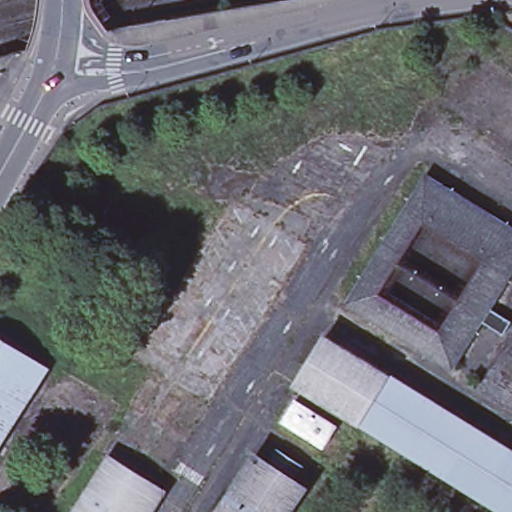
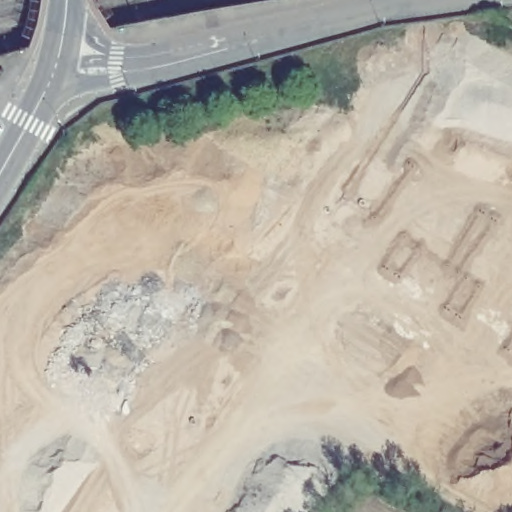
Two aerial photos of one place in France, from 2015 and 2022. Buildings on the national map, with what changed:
demolished [(493,303),(512,315),(512,326),(509,333),(482,320),(453,370),(343,305),(425,172),(512,222),(512,271),(493,303)]
demolished [(47,366),(0,439),(0,336),(47,366)]
demolished [(361,426),(299,387),(300,386),(299,385),(327,339),(390,378),(512,454),(512,512),(504,512),(362,425),(361,426)]
demolished [(281,421),(294,400),(334,425),(322,446),(281,421)]
demolished [(272,463),(280,452),(299,464),(292,476),(305,486),(287,512),(220,512),(259,455),(272,463)]
demolished [(163,494),(152,512),(78,512),(110,462),(163,494)]

